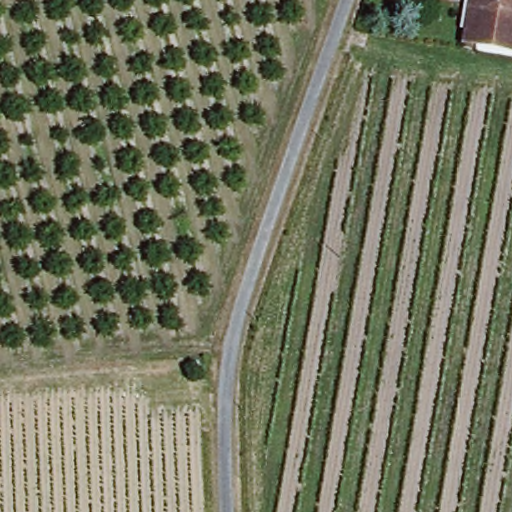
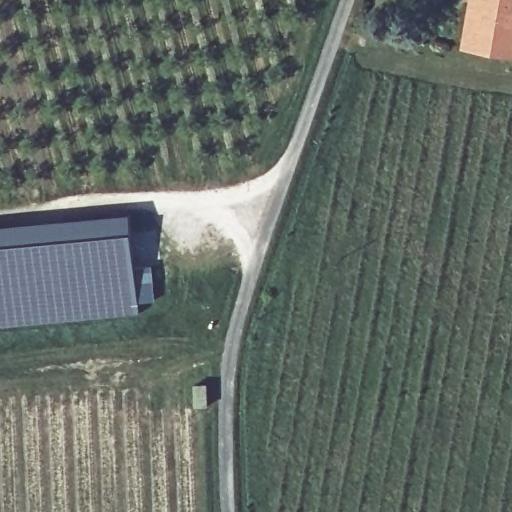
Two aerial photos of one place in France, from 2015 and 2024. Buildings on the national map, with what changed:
unchanged [(475,0),(512,0),(512,53),(467,43),(475,0)]
new [(137,215),(138,234),(0,242),(0,224),(137,215)]
new [(138,234),(140,268),(155,266),(157,301),(142,302),(142,314),(0,322),(0,242),(138,234)]
unchanged [(212,405),(192,405),(192,386),(212,385),(212,405)]
demolished [(187,407),(167,407),(167,388),(188,387),(187,407)]

